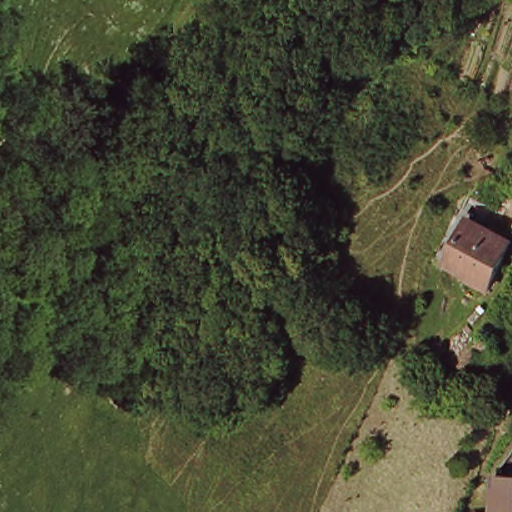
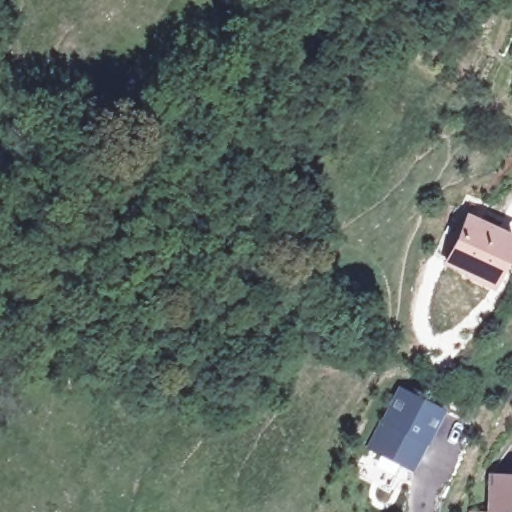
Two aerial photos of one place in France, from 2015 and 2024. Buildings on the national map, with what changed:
unchanged [(467,274),(471,266),(453,257),(475,215),(512,234),(512,247),(493,285),(467,274)]
new [(397,383),(444,409),(412,471),(365,447),(397,383)]
unchanged [(504,474),(512,474),(512,512),(502,512),(504,474)]

